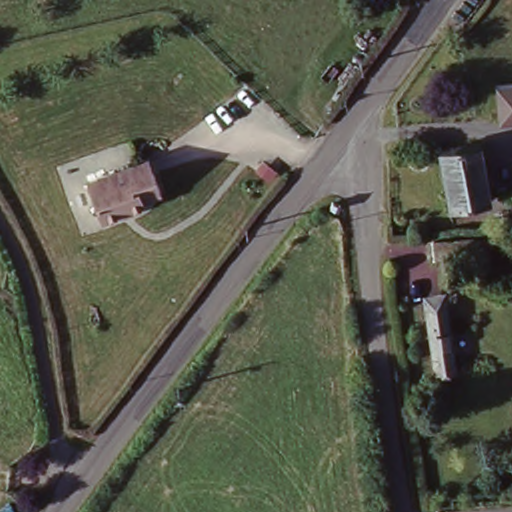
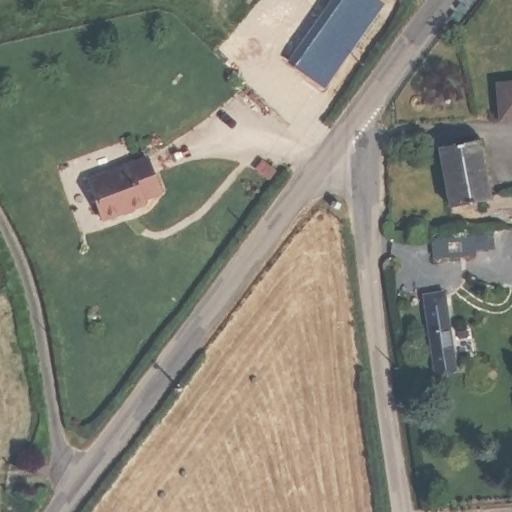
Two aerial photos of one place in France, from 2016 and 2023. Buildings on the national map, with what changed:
new [(332,0),(377,0),(384,5),(327,88),(288,63),(332,0)]
unchanged [(512,81),(512,122),(499,124),(495,116),(494,83),(512,81)]
unchanged [(437,154),(474,146),(486,203),(449,210),(437,154)]
unchanged [(146,161),(157,196),(139,201),(140,206),(97,219),(85,180),(146,161)]
unchanged [(427,247),(468,242),(470,262),(431,264),(427,247)]
unchanged [(418,304),(441,299),(443,312),(451,374),(431,376),(420,316),(418,304)]
demolished [(512,408),(512,434),(509,409),(512,408)]

